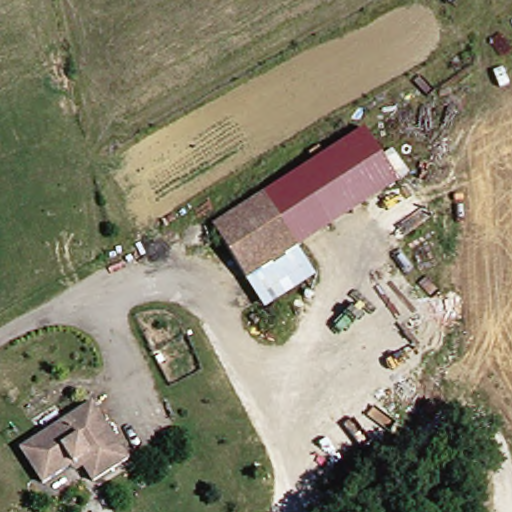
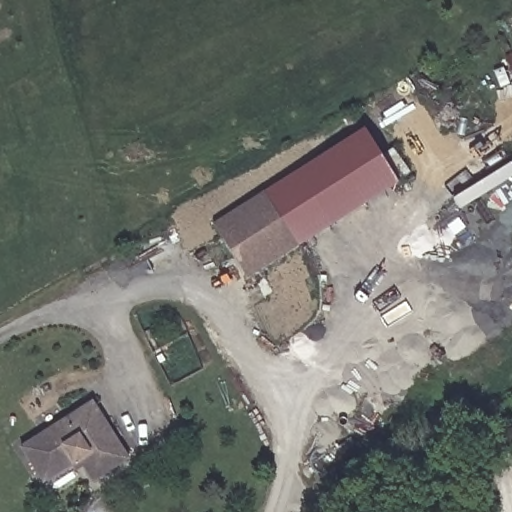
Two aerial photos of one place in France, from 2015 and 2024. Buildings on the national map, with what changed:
unchanged [(267,187),(369,122),(404,179),(302,242),(267,187)]
unchanged [(217,219),(267,187),(302,242),(252,275),(217,219)]
unchanged [(318,268),(267,301),(252,275),(302,242),(318,268)]
unchanged [(133,460),(100,482),(91,467),(87,460),(47,484),(25,448),(96,401),(133,460)]

